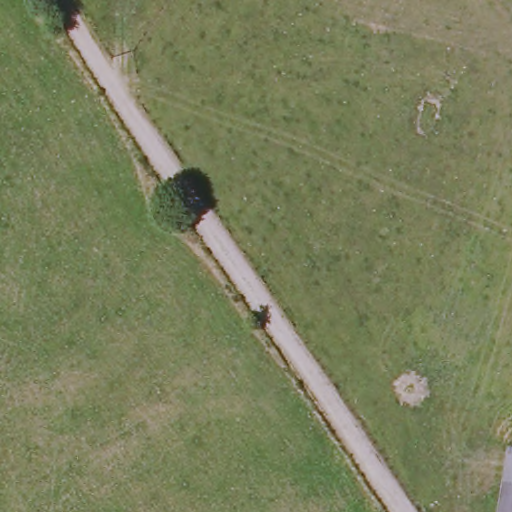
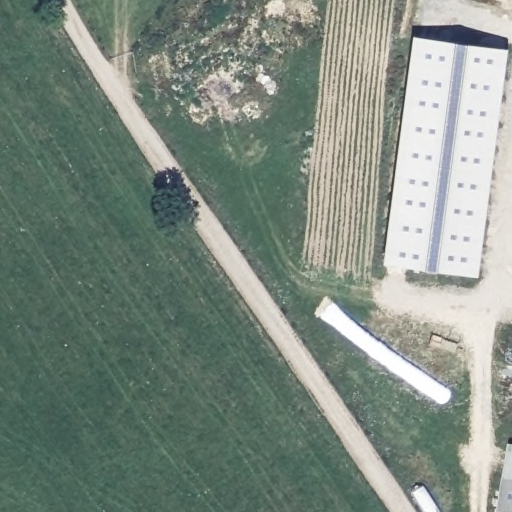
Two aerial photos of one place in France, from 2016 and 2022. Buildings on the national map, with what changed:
new [(477,276),(383,263),(413,37),(507,50),(477,276)]
unchanged [(499,512),(510,446),(512,446),(512,512),(499,512)]

